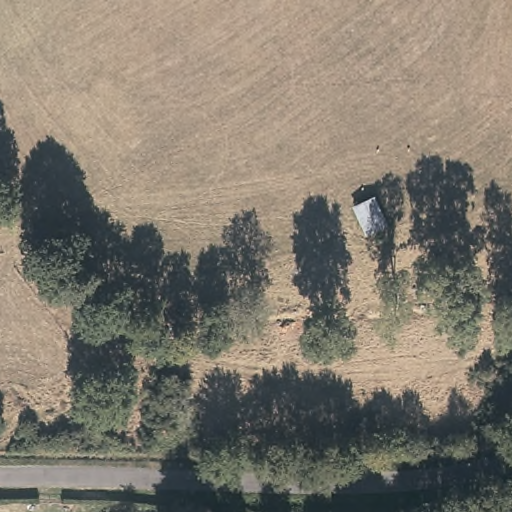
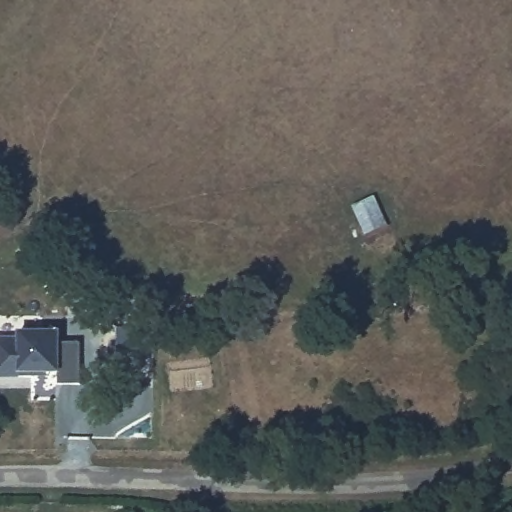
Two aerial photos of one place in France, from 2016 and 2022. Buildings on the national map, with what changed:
unchanged [(376,194),(391,225),(365,235),(350,202),(376,194)]
new [(21,330),(61,330),(61,343),(80,342),(79,382),(59,382),(57,372),(47,372),(47,376),(0,376),(0,337),(21,337),(21,330)]

